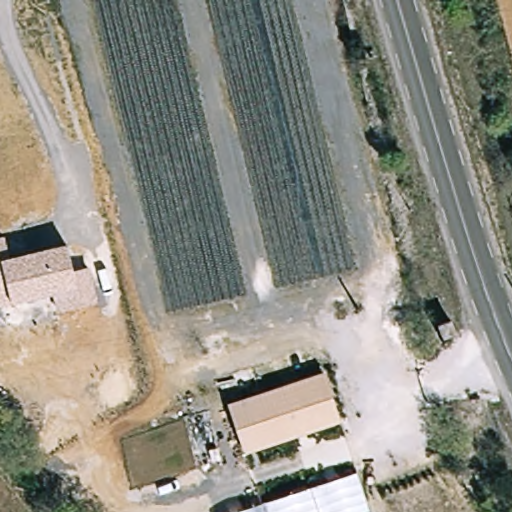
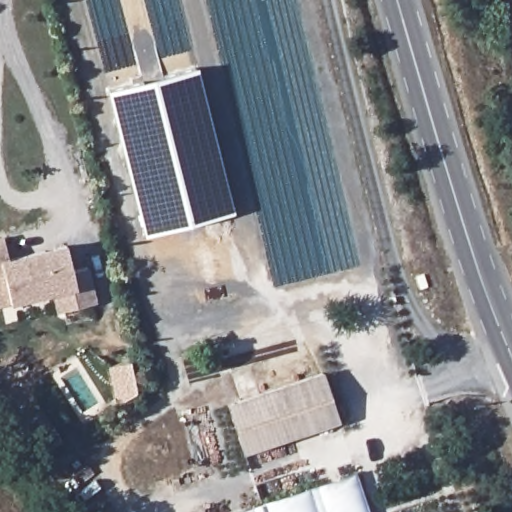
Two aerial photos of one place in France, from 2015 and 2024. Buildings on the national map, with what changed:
new [(234,214),(144,235),(108,90),(197,67),(234,214)]
unchanged [(4,235),(10,257),(67,245),(73,270),(90,267),(98,303),(57,313),(52,295),(10,305),(0,307),(0,236),(4,235)]
unchanged [(224,400),(320,373),(334,421),(237,448),(224,400)]
unchanged [(364,512),(263,512),(260,504),(351,473),(364,512)]
new [(260,504),(263,512),(236,512),(260,504)]

